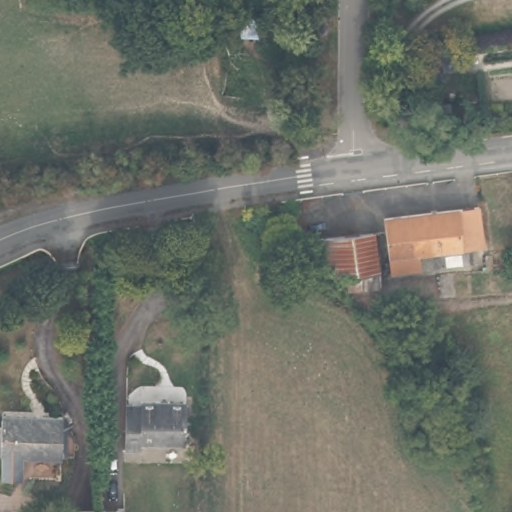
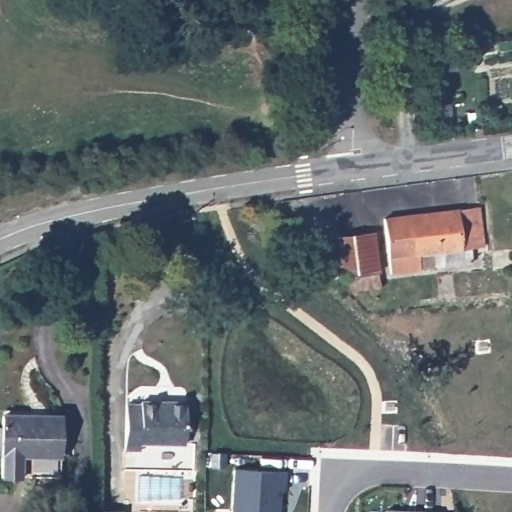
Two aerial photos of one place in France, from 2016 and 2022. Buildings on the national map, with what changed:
unchanged [(472,46),(475,66),(442,70),(443,78),(422,81),(418,53),(472,46)]
unchanged [(422,270),(392,273),(385,218),(480,206),(485,246),(472,248),(473,261),(437,266),(422,268),(422,270)]
unchanged [(370,232),(375,272),(374,272),(376,287),(345,291),(342,276),(332,277),(330,264),(315,266),(311,239),(370,232)]
unchanged [(140,404),(141,401),(186,401),(185,443),(141,442),(141,450),(125,450),(126,403),(140,404)]
unchanged [(60,456),(59,456),(59,477),(4,476),(4,456),(0,456),(0,427),(4,427),(5,414),(61,415),(60,456)]
new [(284,470),(283,491),(281,490),(279,512),(231,512),(234,467),(284,470)]
unchanged [(101,510),(100,512),(76,512),(77,510),(101,510)]
unchanged [(121,512),(100,512),(101,510),(122,511),(121,512)]
new [(406,512),(385,512),(386,511),(406,512)]

